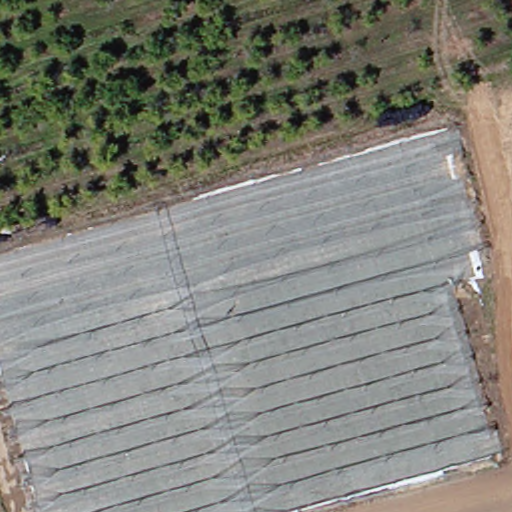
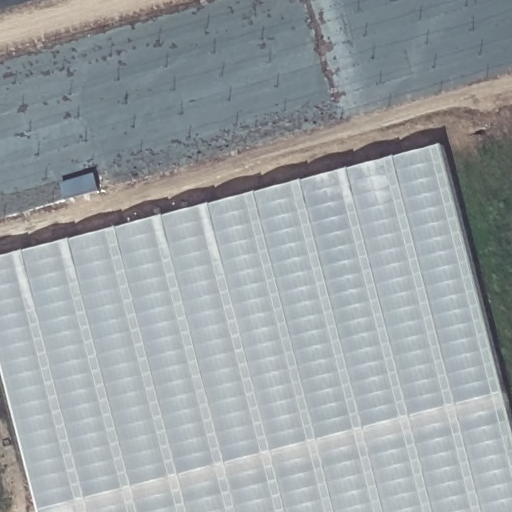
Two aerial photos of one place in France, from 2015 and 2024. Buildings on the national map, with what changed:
new [(512,405),(512,512),(44,512),(0,341),(0,257),(445,144),(512,405)]
new [(64,182),(95,175),(99,192),(68,199),(64,182)]

